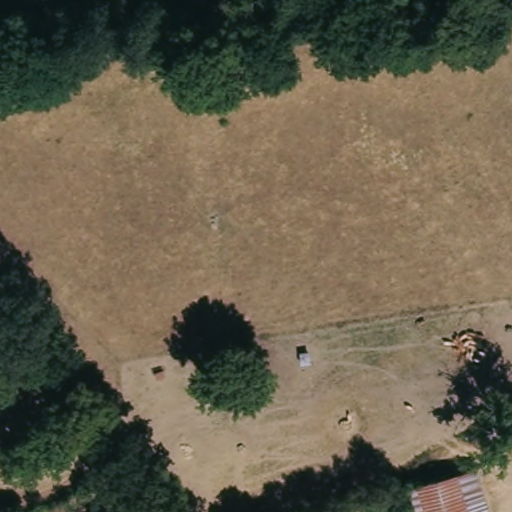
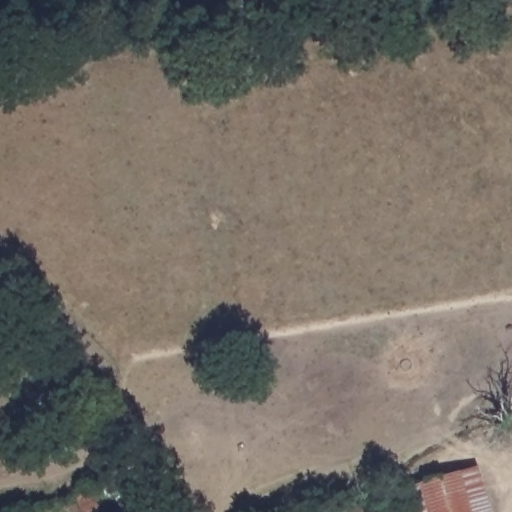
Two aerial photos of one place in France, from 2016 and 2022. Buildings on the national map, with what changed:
unchanged [(477,469),(490,512),(403,512),(396,491),(477,469)]
unchanged [(371,502),(377,512),(345,512),(371,502)]

